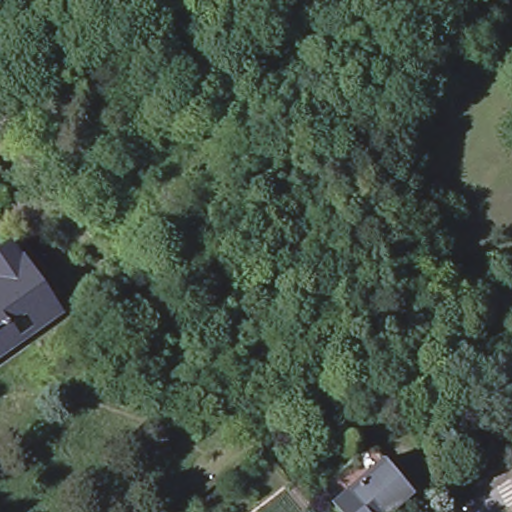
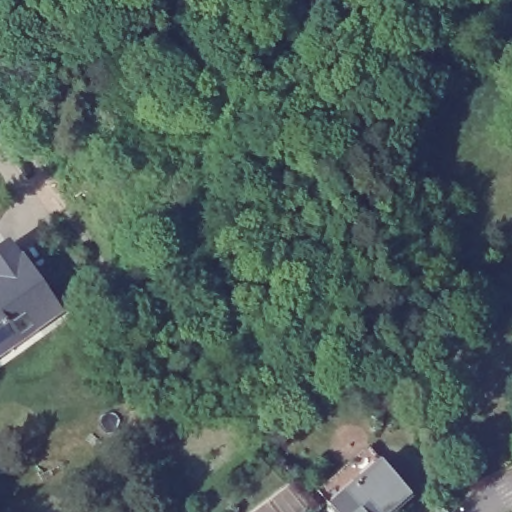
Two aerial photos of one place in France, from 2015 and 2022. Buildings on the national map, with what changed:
unchanged [(65,307),(0,352),(0,277),(3,275),(0,271),(0,251),(19,238),(65,307)]
unchanged [(417,502),(405,512),(336,512),(324,497),(375,453),(417,502)]

